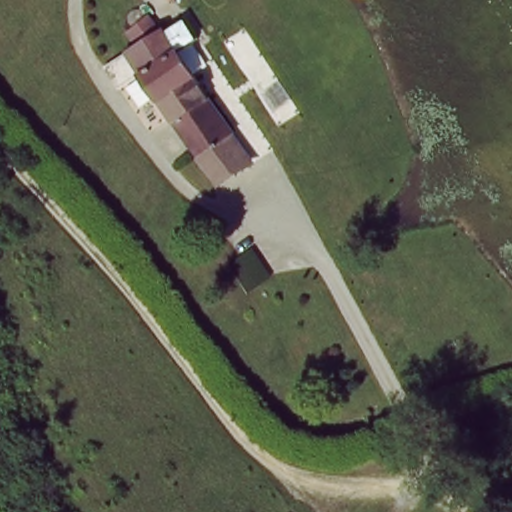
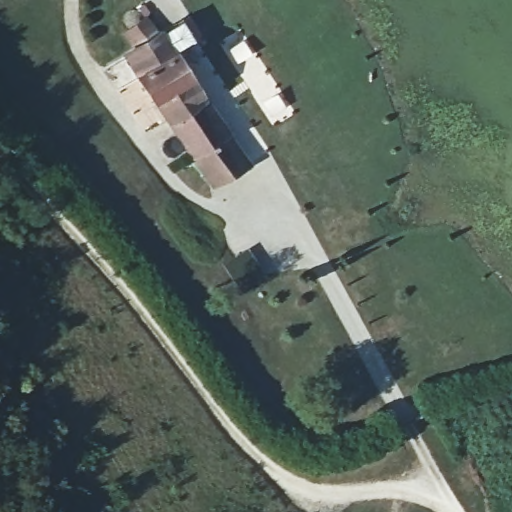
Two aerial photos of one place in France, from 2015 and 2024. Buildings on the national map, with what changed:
unchanged [(159,27),(141,42),(125,23),(144,7),(159,27)]
unchanged [(118,95),(100,69),(189,17),(210,51),(189,66),(178,48),(137,79),(139,82),(118,95)]
unchanged [(198,155),(139,82),(137,79),(178,48),(189,66),(230,131),(198,155)]
unchanged [(247,160),(222,178),(210,173),(198,155),(230,131),(247,160)]

